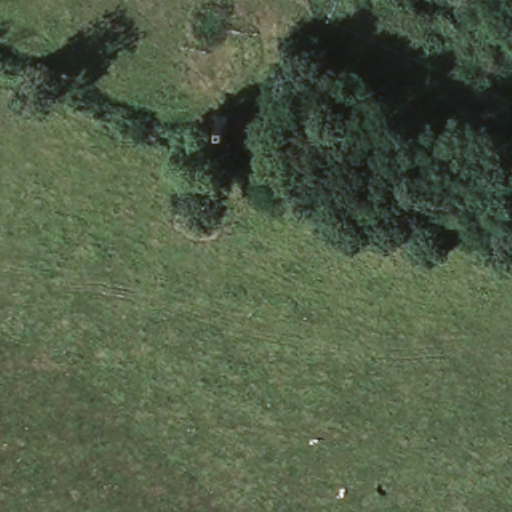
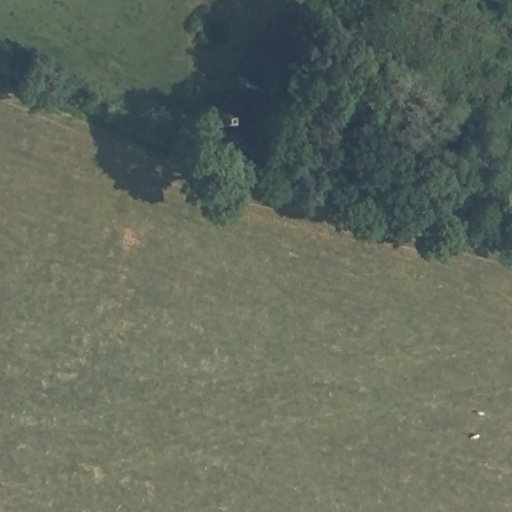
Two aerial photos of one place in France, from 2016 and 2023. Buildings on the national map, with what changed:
[]

